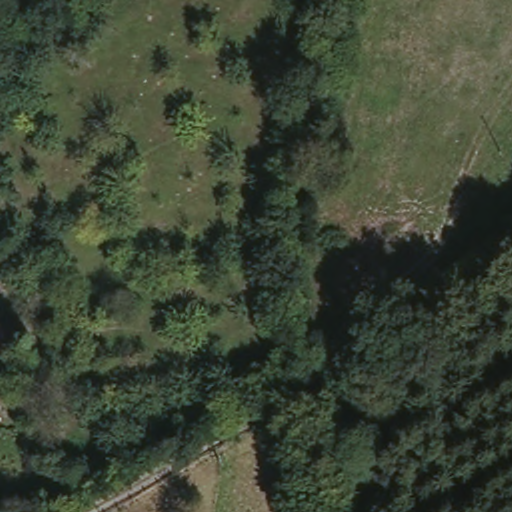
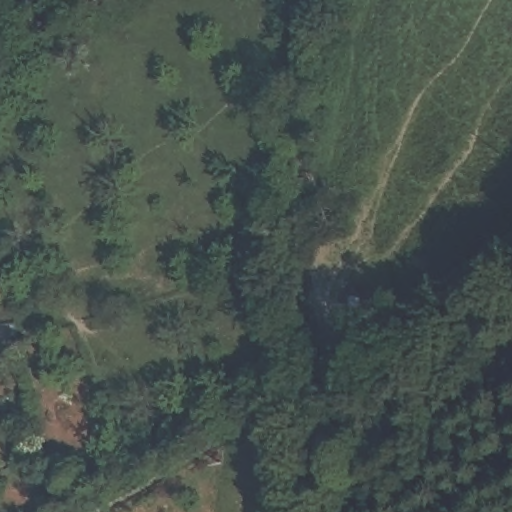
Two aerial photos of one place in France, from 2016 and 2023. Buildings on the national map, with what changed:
[]

